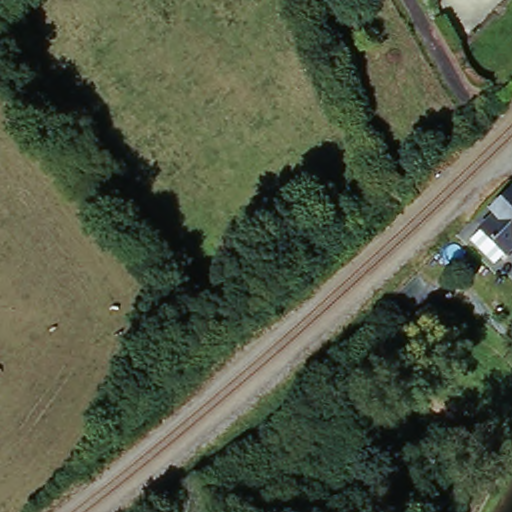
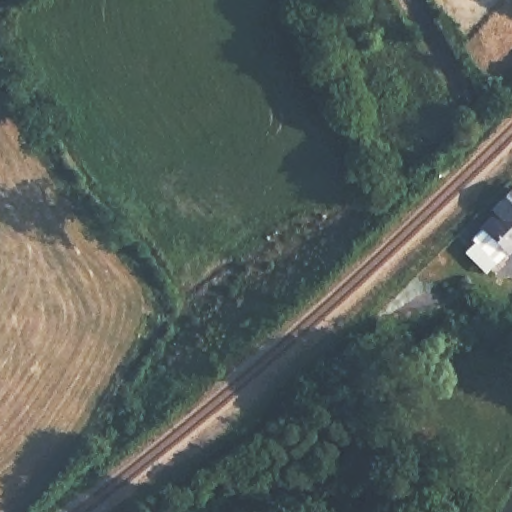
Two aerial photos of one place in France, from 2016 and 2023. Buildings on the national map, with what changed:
unchanged [(499,204),(497,199),(512,189),(512,244),(506,249),(496,260),(470,235),(481,224),(480,223),(499,204)]

